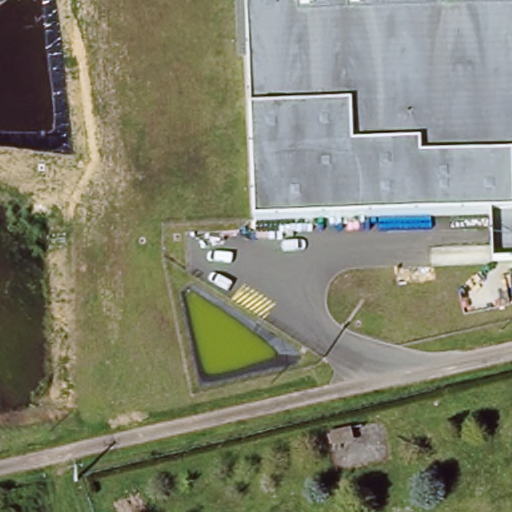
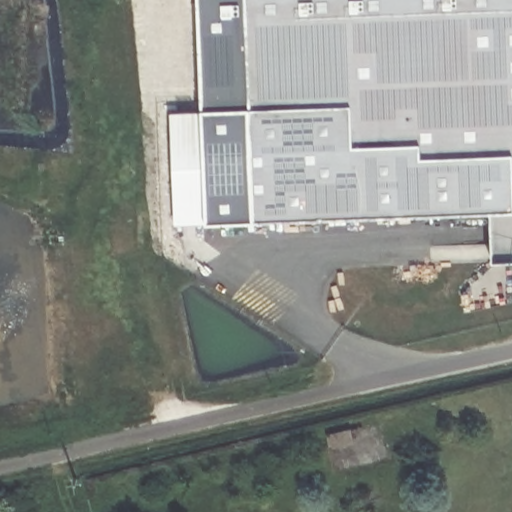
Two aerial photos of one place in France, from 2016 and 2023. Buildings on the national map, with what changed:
new [(209,221),(175,223),(171,113),(204,113),(199,0),(245,0),(255,220),(209,221)]
unchanged [(490,210),(255,220),(245,0),(512,0),(512,259),(493,260),(490,210)]
demolished [(377,413),(377,415),(381,439),(332,449),(327,425),(327,424),(377,413)]

